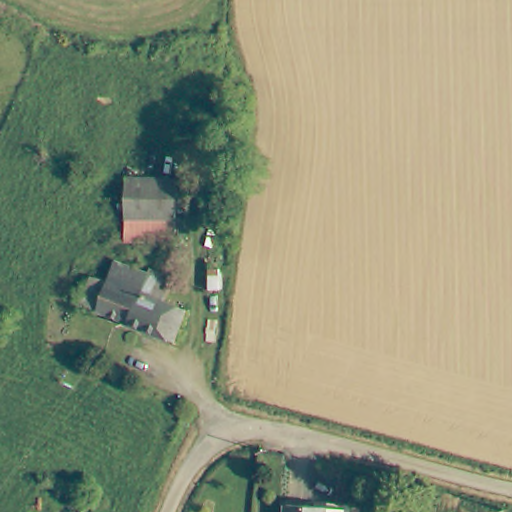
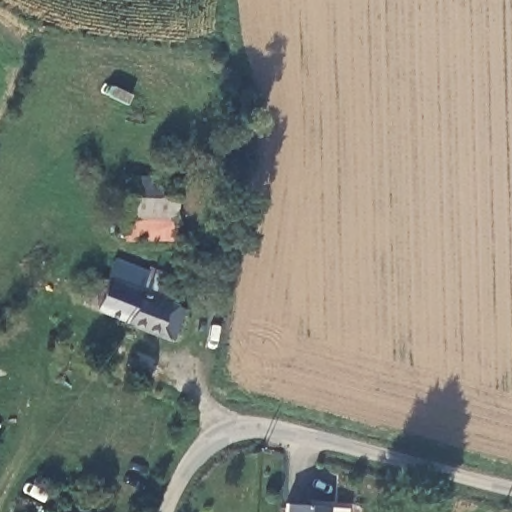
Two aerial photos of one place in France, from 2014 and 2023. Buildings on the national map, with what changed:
unchanged [(185,170),(184,220),(132,218),(134,165),(185,170)]
unchanged [(119,274),(125,256),(156,268),(151,286),(190,303),(181,332),(90,302),(103,266),(115,272),(119,274)]
unchanged [(2,445),(0,448),(0,443),(2,445)]
unchanged [(327,501),(347,503),(346,512),(289,512),(290,498),(327,501)]

